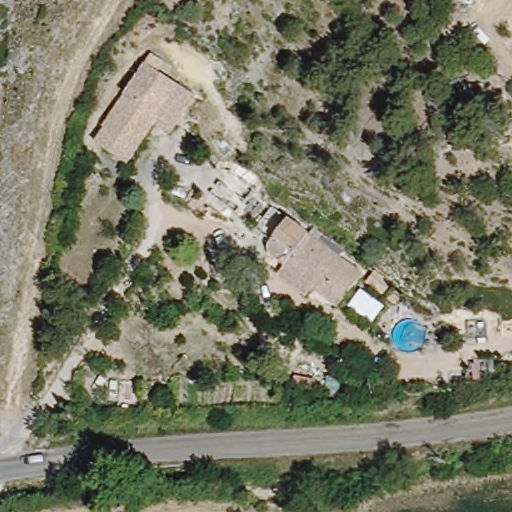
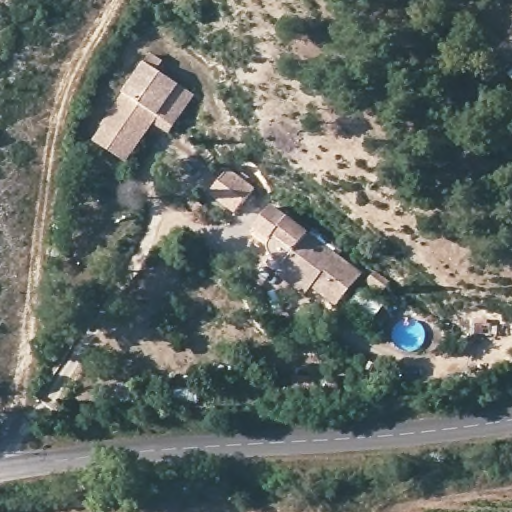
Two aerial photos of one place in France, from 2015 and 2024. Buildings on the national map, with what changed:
unchanged [(92,138),(100,127),(122,94),(129,83),(144,63),(172,82),(189,93),(163,131),(151,122),(133,149),(125,159),(98,142),(92,138)]
new [(228,175),(252,192),(235,217),(210,199),(228,175)]
unchanged [(211,211),(207,218),(196,212),(199,205),(211,211)]
unchanged [(279,272),(285,264),(275,257),(273,256),(271,254),(269,252),(268,250),(268,247),(268,244),(268,242),(269,240),(270,239),(285,217),(363,270),(341,302),(318,286),(313,295),(279,272)]

